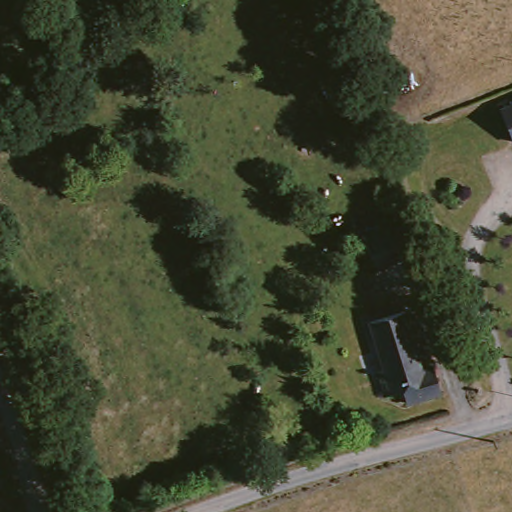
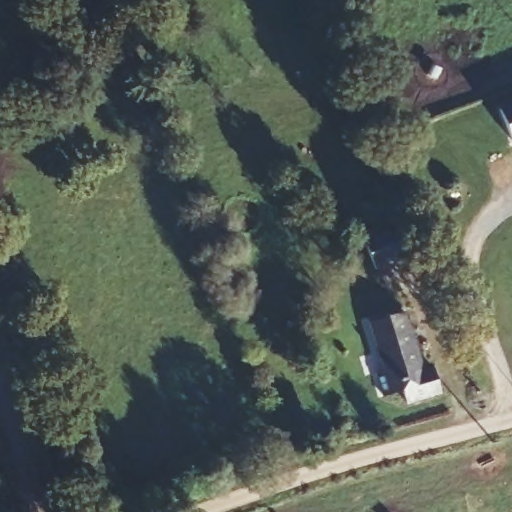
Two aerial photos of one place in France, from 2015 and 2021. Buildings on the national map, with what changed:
unchanged [(499,109),(512,103),(512,139),(510,134),(499,109)]
unchanged [(396,222),(406,254),(372,265),(362,233),(396,222)]
unchanged [(435,364),(444,390),(408,401),(405,392),(386,398),(378,372),(385,370),(370,322),(405,311),(405,312),(423,368),(435,364)]

